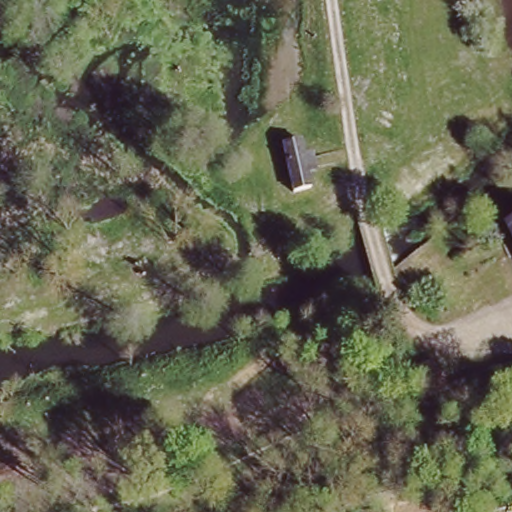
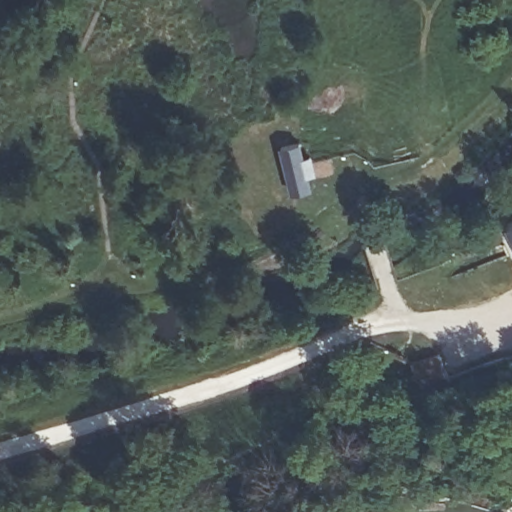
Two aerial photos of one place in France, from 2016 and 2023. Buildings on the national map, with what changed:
unchanged [(295,136),(307,183),(290,186),(279,139),(295,136)]
unchanged [(503,223),(498,214),(507,209),(512,207),(512,239),(503,223)]
unchanged [(437,358),(448,384),(420,393),(411,365),(437,358)]

